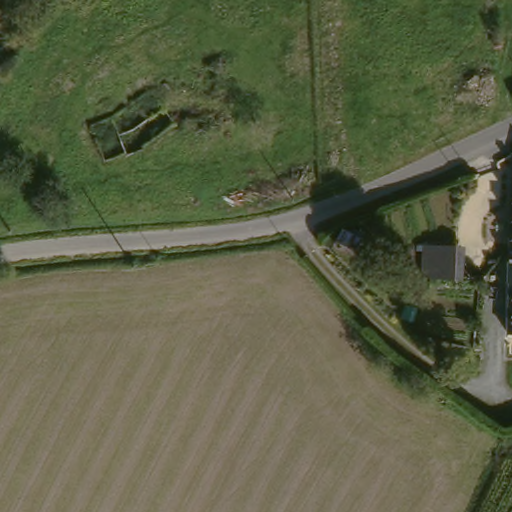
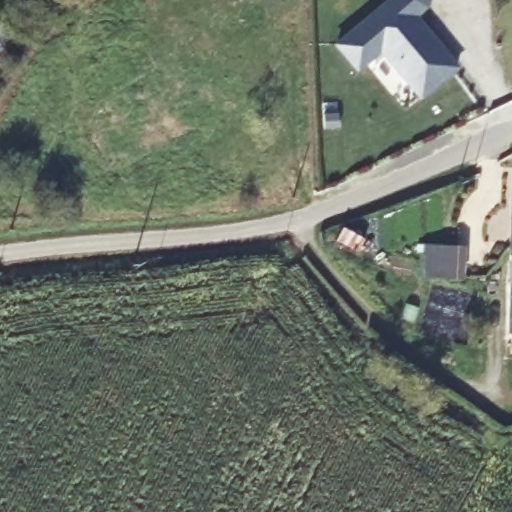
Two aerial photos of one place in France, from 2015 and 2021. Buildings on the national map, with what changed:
new [(427,5),(415,15),(432,35),(426,41),(438,56),(445,50),(457,66),(425,93),(412,78),(407,81),(380,48),(358,68),(337,44),(390,0),(429,0),(427,5)]
demolished [(421,88),(458,86),(456,73),(496,70),(499,104),(463,108),(422,112),(421,88)]
unchanged [(463,242),(462,275),(430,275),(430,242),(463,242)]
unchanged [(512,295),(512,329),(511,329),(512,295)]

